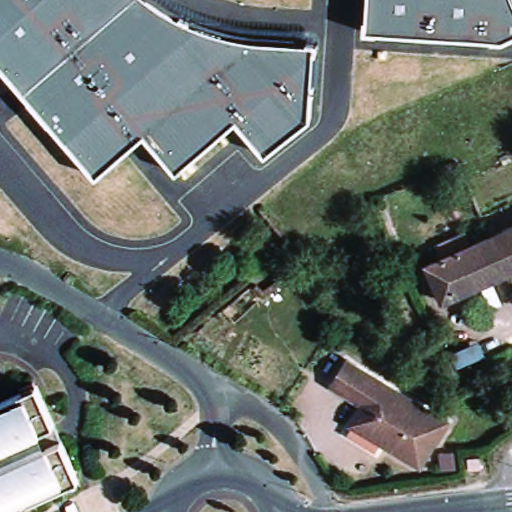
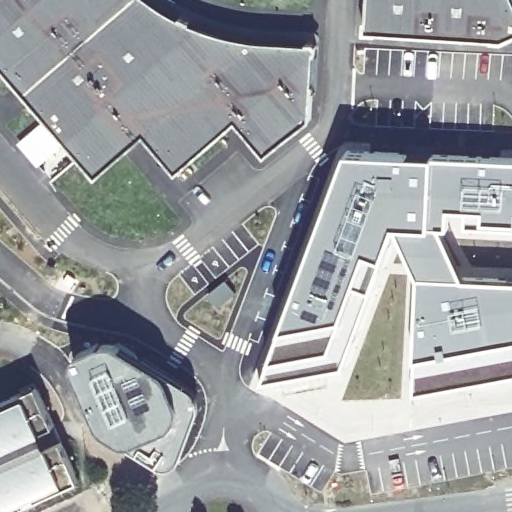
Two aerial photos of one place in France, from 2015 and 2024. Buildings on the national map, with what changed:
unchanged [(267,153),(239,120),(179,170),(145,132),(96,174),(0,61),(0,0),(153,0),(182,18),(217,32),(266,40),(316,43),(311,116),(267,153)]
unchanged [(512,0),(512,35),(503,40),(365,31),(367,0),(512,0)]
new [(269,350),(319,218),(344,146),(426,151),(512,154),(512,227),(502,227),(502,229),(494,229),(493,238),(456,239),(451,226),(444,228),(444,225),(443,225),(399,223),(396,223),(383,253),(374,274),(371,273),(366,284),(358,281),(339,337),(342,338),(341,339),(349,341),(341,365),(317,367),(304,368),(260,379),(269,350)]
new [(443,225),(444,225),(444,228),(465,272),(512,275),(512,372),(502,373),(414,391),(413,357),(417,274),(402,238),(399,223),(443,225)]
demolished [(512,275),(496,240),(512,233),(512,275)]
demolished [(512,275),(448,304),(432,269),(448,261),(475,249),(496,240),(512,275)]
new [(104,339),(114,338),(153,360),(196,388),(201,398),(201,408),(186,448),(178,462),(169,466),(161,466),(103,430),(90,409),(69,354),(104,339)]
demolished [(355,423),(367,403),(334,383),(349,358),(452,421),(424,466),(386,442),(358,424),(355,423)]
unchanged [(79,476),(0,512),(0,406),(40,388),(79,476)]
demolished [(468,456),(486,453),(487,466),(469,468),(468,456)]
demolished [(463,471),(453,471),(452,463),(463,463),(463,471)]
unchanged [(83,484),(21,512),(0,512),(79,476),(83,484)]

